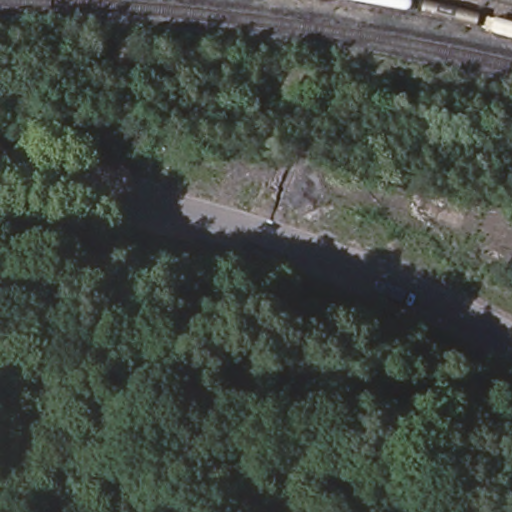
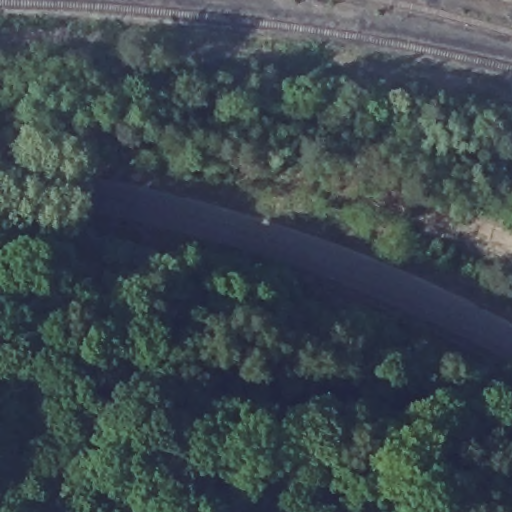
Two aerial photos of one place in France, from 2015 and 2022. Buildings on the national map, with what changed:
unchanged [(140,229),(137,246),(107,241),(109,224),(140,229)]

